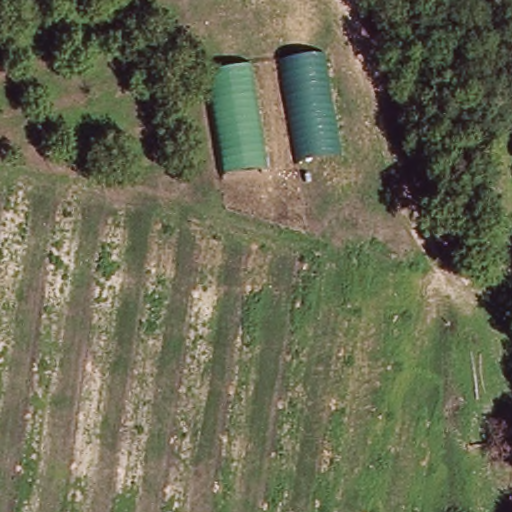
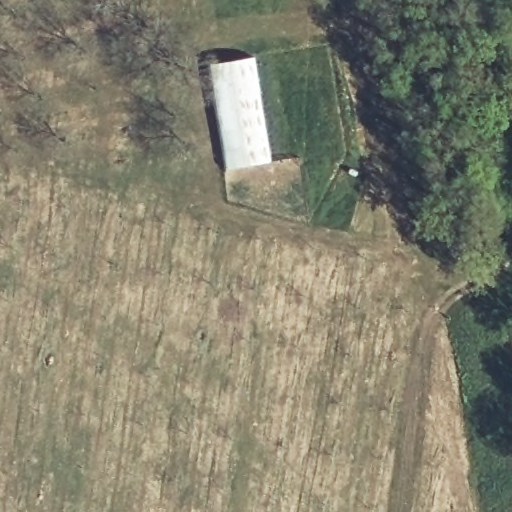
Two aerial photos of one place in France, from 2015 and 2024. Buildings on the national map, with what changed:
demolished [(329,47),(345,151),(301,157),(285,54),(329,47)]
unchanged [(249,60),(267,160),(220,168),(206,66),(249,60)]

